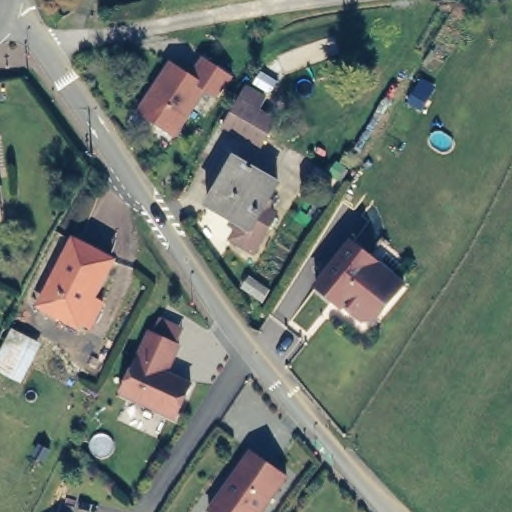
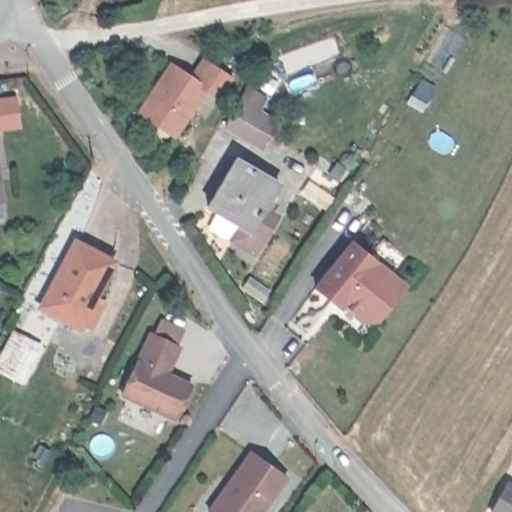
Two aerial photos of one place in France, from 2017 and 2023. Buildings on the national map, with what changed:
unchanged [(190,74),(202,57),(233,77),(220,100),(205,92),(176,139),(135,112),(169,61),(190,74)]
unchanged [(273,121),(259,144),(223,122),(237,99),(273,121)]
unchanged [(227,236),(236,222),(204,202),(232,157),(272,182),(257,207),(266,213),(270,216),(250,250),(245,248),(227,236)]
unchanged [(407,285),(377,322),(362,324),(312,289),(352,241),(407,285)]
unchanged [(82,245),(119,265),(82,329),(45,309),(82,245)]
unchanged [(182,346),(170,375),(193,384),(176,421),(121,397),(151,333),(182,346)]
unchanged [(27,390),(0,379),(0,364),(14,338),(48,348),(27,390)]
unchanged [(266,512),(209,512),(251,452),(289,477),(266,512)]
new [(507,482),(512,485),(512,512),(493,512),(491,511),(507,482)]

